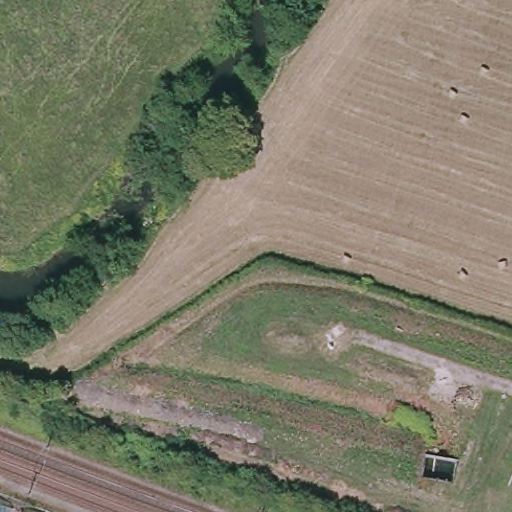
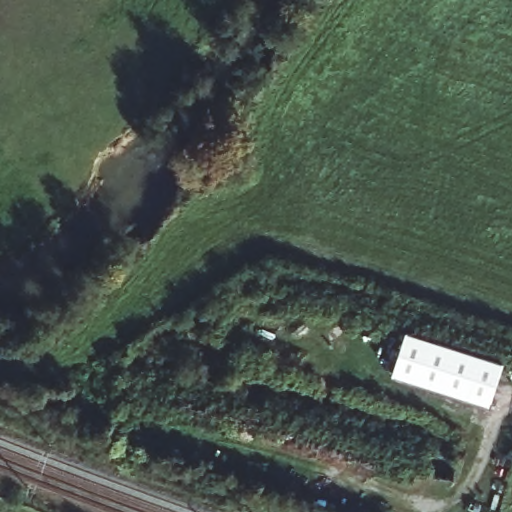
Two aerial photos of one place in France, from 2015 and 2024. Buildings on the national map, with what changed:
new [(506,361),(490,405),(391,372),(403,327),(506,361)]
unchanged [(46,512),(0,512),(0,495),(46,512)]

